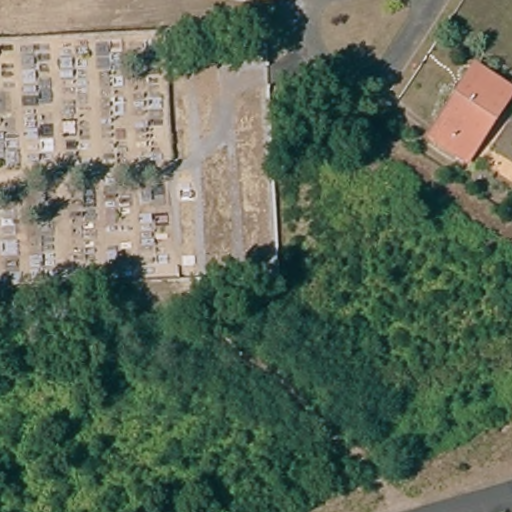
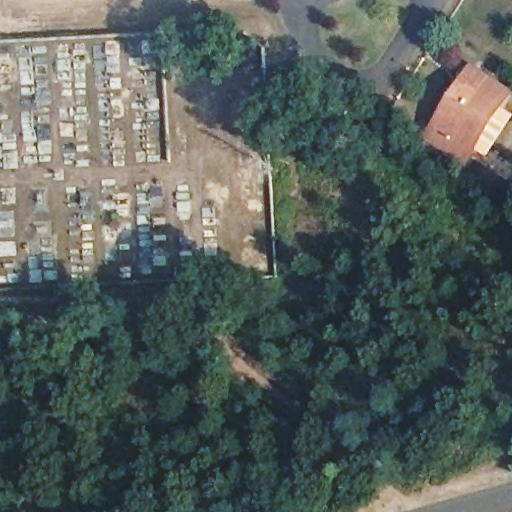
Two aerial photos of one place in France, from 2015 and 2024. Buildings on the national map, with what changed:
unchanged [(460,166),(428,145),(476,75),(507,96),(460,166)]

